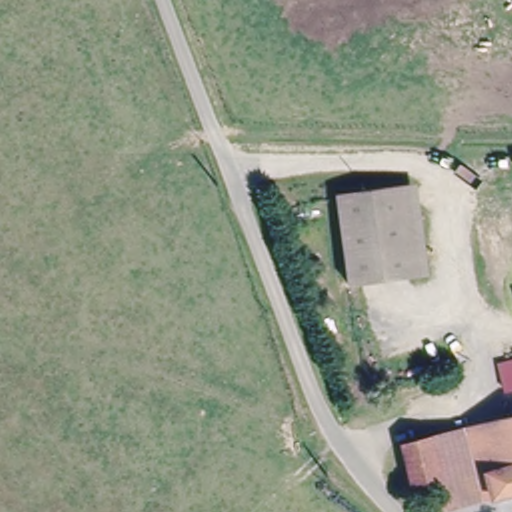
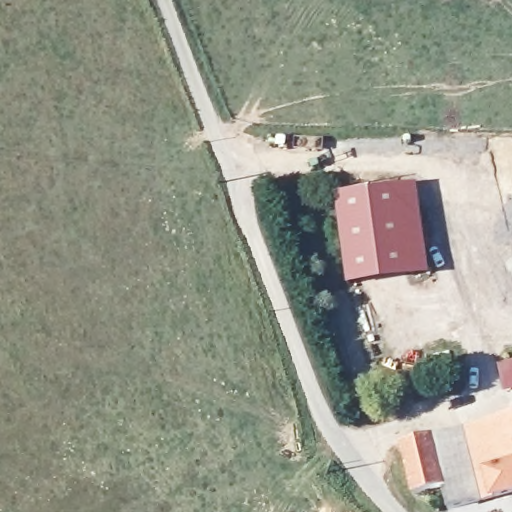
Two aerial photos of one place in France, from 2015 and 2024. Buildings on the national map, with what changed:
unchanged [(430,278),(362,287),(343,199),(410,185),(430,278)]
unchanged [(506,388),(505,377),(499,377),(497,363),(512,360),(512,388),(506,388)]
unchanged [(443,498),(440,482),(410,486),(402,438),(512,416),(512,486),(443,498)]

